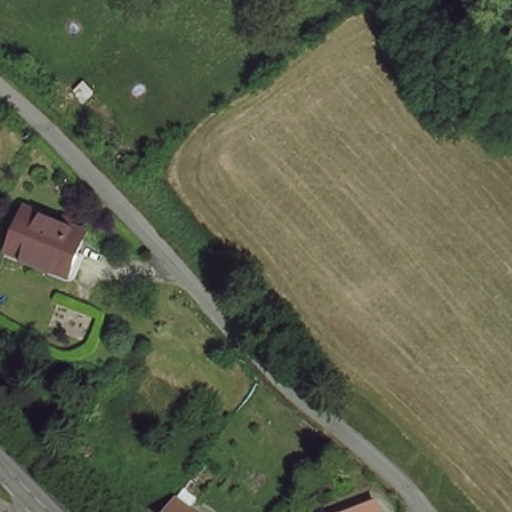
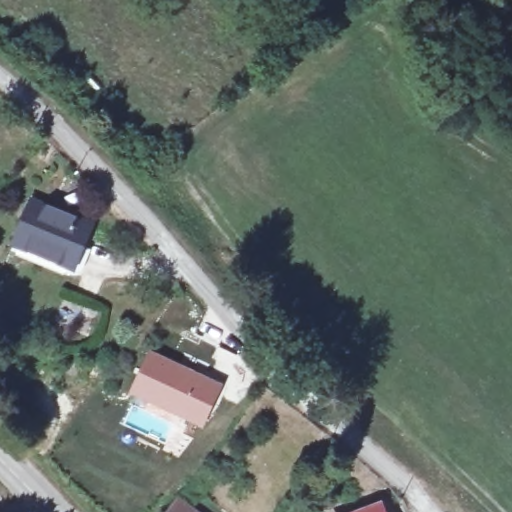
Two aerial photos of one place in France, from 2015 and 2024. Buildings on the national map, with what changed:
unchanged [(65,216),(67,210),(76,214),(75,220),(88,224),(71,267),(13,244),(28,204),(65,216)]
new [(148,349),(225,382),(205,428),(128,393),(148,349)]
unchanged [(364,512),(383,503),(387,512),(364,512)]
unchanged [(177,512),(170,512),(172,508),(177,512)]

